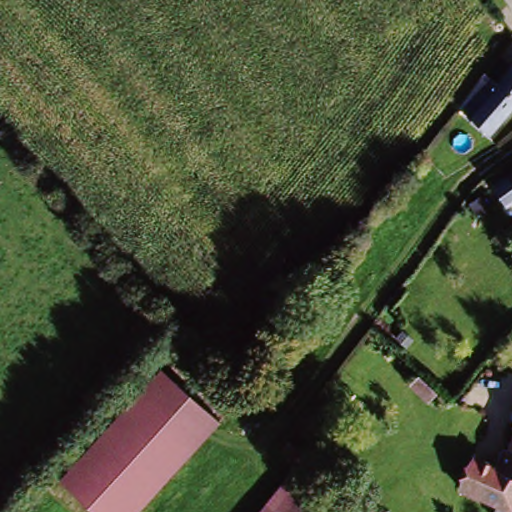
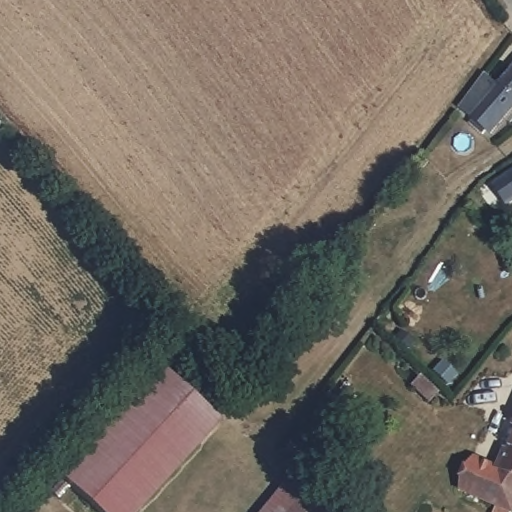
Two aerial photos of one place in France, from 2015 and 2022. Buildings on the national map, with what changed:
unchanged [(468,105),(490,79),(502,90),(512,79),(512,112),(497,129),(468,105)]
unchanged [(60,482),(162,371),(220,423),(138,512),(93,512),(60,482)]
unchanged [(430,402),(410,385),(417,376),(437,392),(430,402)]
unchanged [(330,471),(322,481),(287,452),(295,443),(330,471)]
unchanged [(507,458),(512,448),(512,479),(493,472),(499,457),(507,458)]
unchanged [(496,507),(460,492),(472,463),(493,472),(512,479),(512,512),(493,512),(496,507)]
unchanged [(293,486),(311,501),(325,512),(271,512),(293,486)]

